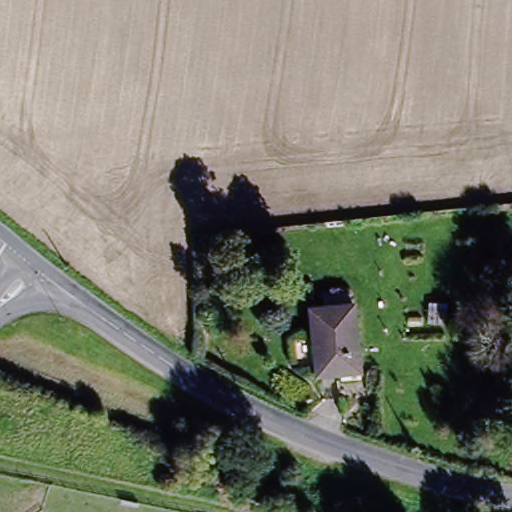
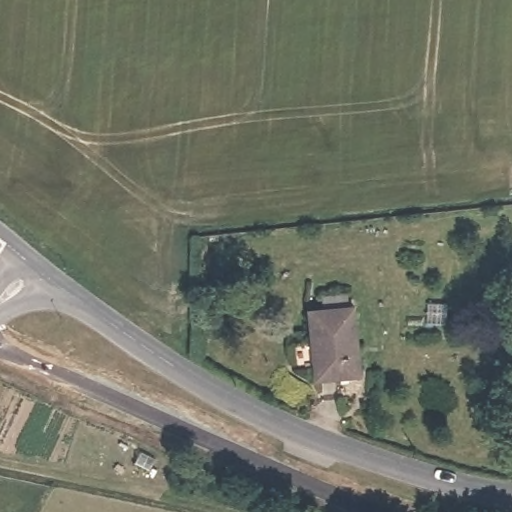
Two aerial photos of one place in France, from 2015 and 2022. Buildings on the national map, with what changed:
unchanged [(338,383),(337,377),(316,381),(307,317),(318,315),(317,302),(341,298),(343,311),(347,311),(357,375),(347,376),(347,382),(338,383)]

